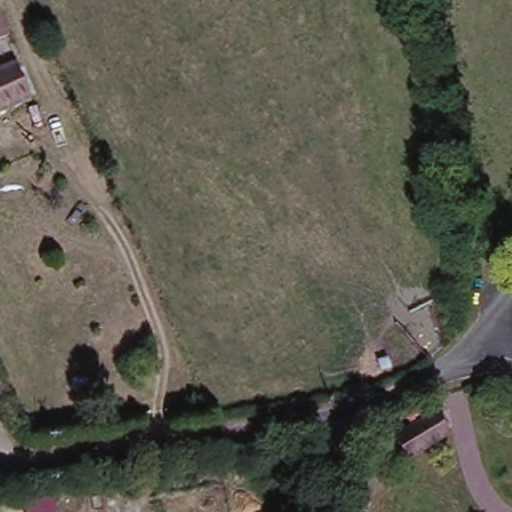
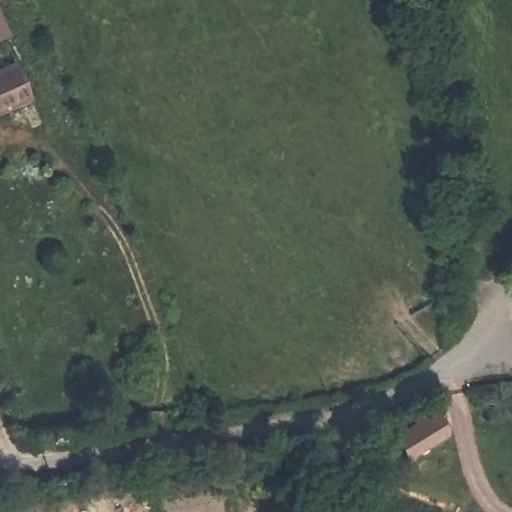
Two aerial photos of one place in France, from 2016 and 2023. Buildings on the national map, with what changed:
unchanged [(0,38),(0,23),(5,35),(0,38)]
unchanged [(30,92),(0,106),(0,68),(17,60),(30,92)]
unchanged [(510,398),(512,398),(512,409),(510,398)]
unchanged [(395,435),(410,427),(440,411),(451,435),(421,450),(409,455),(395,435)]

